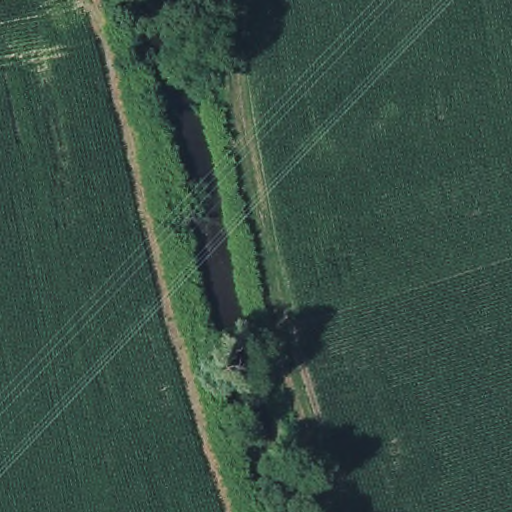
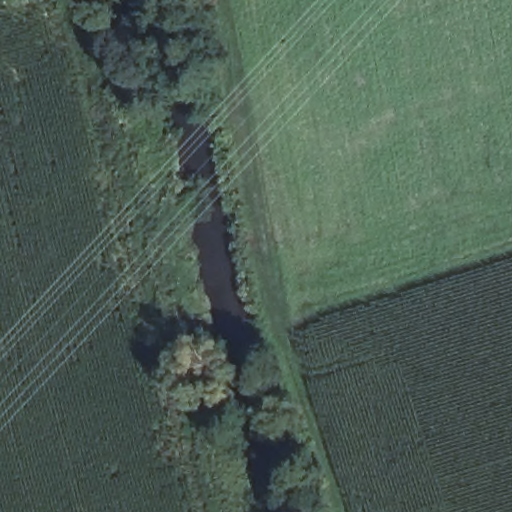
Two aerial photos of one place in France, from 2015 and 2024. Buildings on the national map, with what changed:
[]

